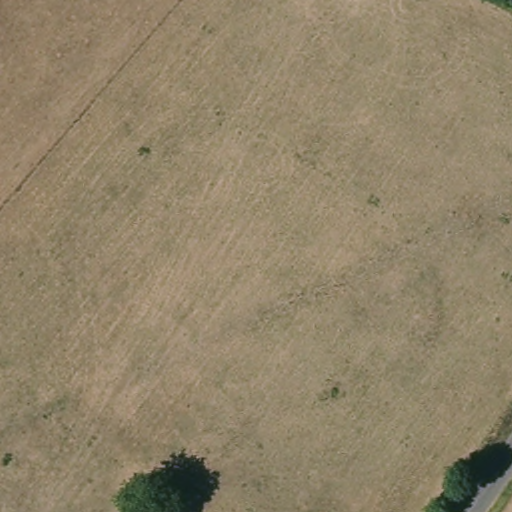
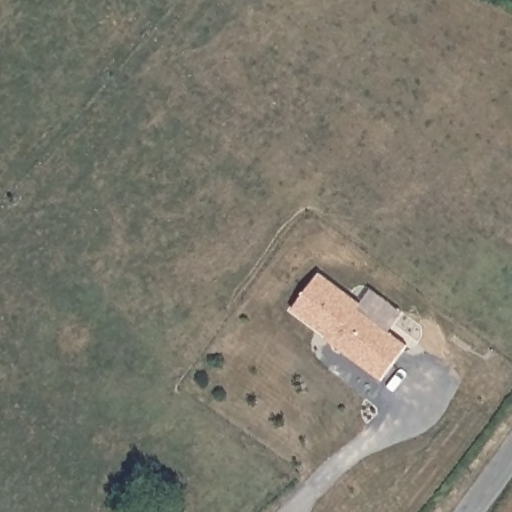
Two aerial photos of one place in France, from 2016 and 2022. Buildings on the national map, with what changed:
new [(325,340),(328,337),(292,310),(319,274),(361,305),(358,309),(408,346),(381,381),(325,340)]

